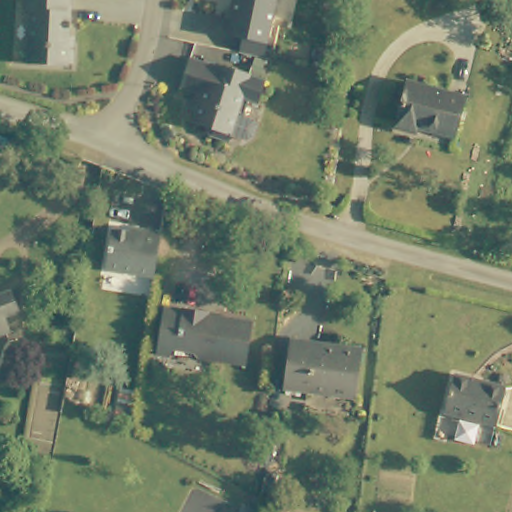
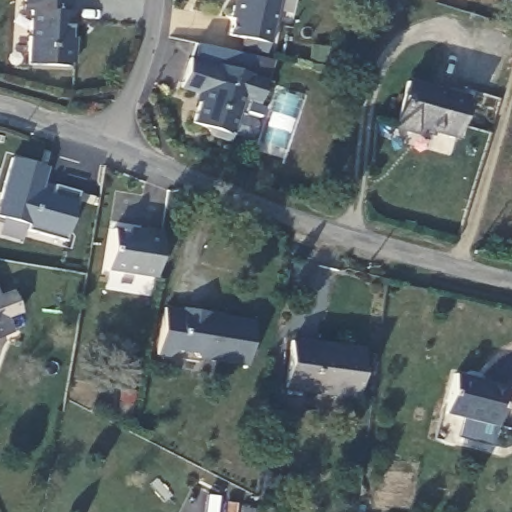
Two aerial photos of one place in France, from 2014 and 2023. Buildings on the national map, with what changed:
unchanged [(25,14),(26,0),(71,0),(69,43),(74,44),(72,65),(66,65),(66,70),(29,68),(31,15),(25,14)]
unchanged [(235,16),(232,16),(234,3),(237,4),(237,0),(278,0),(271,40),(268,55),(244,50),(247,35),(231,32),(235,16)]
unchanged [(205,132),(191,125),(203,98),(180,89),(192,60),(219,71),(220,68),(266,88),(257,111),(249,107),(244,122),(237,119),(226,147),(208,139),(205,132)]
unchanged [(407,86),(461,100),(449,141),(416,130),(413,138),(393,133),(407,86)]
new [(49,166),(42,191),(52,194),(55,186),(77,192),(65,235),(0,216),(0,200),(12,157),(49,166)]
unchanged [(112,231),(139,234),(139,235),(145,235),(146,229),(164,231),(157,275),(107,268),(112,231)]
unchanged [(20,311),(4,316),(9,331),(0,334),(0,295),(12,291),(20,311)]
unchanged [(164,312),(184,314),(185,310),(219,315),(219,319),(257,324),(252,364),(207,360),(207,356),(179,353),(177,361),(157,358),(164,312)]
unchanged [(288,337),(360,349),(353,396),(283,389),(288,337)]
unchanged [(453,373),(504,385),(495,425),(443,411),(453,373)]
unchanged [(240,504),(252,505),(251,512),(239,512),(240,504)]

